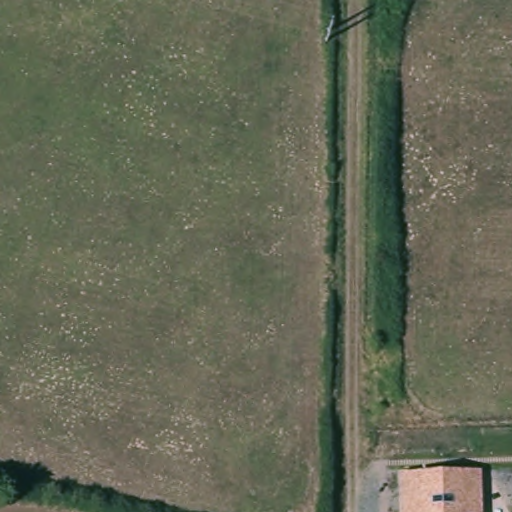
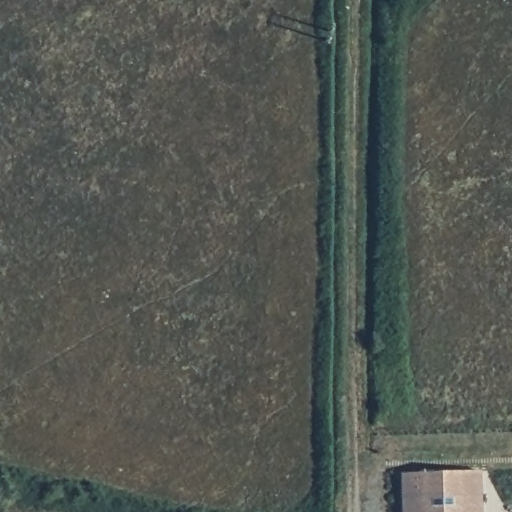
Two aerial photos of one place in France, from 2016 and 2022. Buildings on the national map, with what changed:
unchanged [(483,474),(485,512),(405,512),(404,478),(483,474)]

